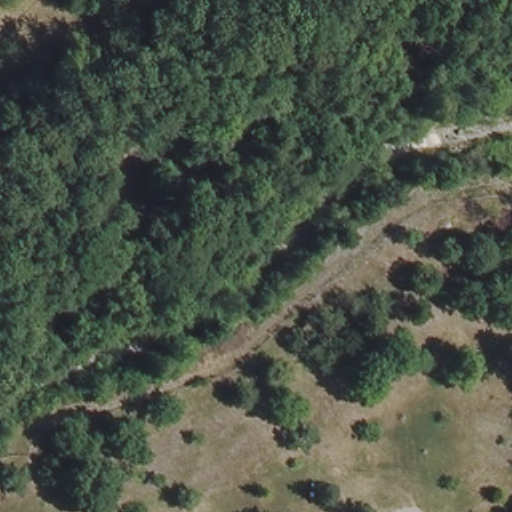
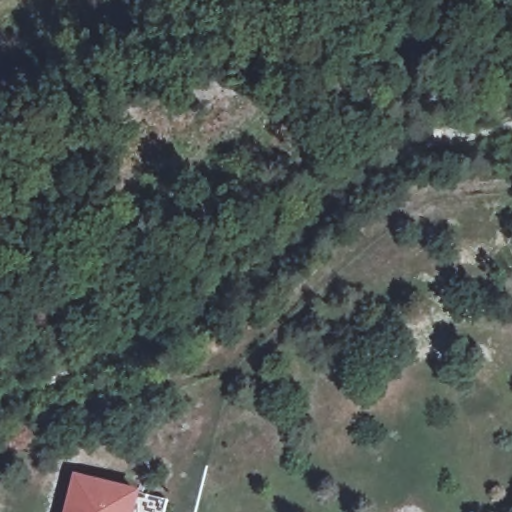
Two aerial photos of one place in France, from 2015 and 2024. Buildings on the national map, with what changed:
new [(167,500),(164,512),(65,512),(74,475),(139,492),(167,500)]

